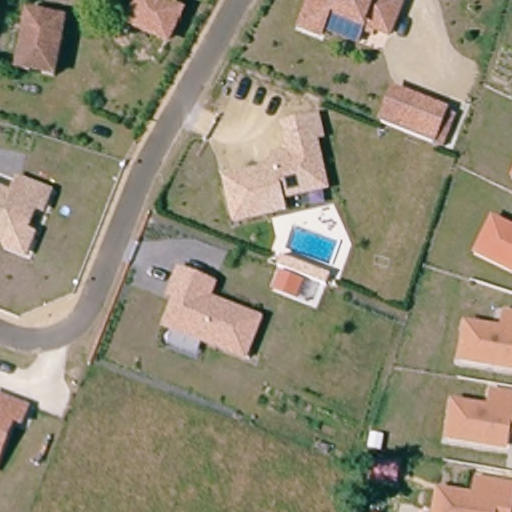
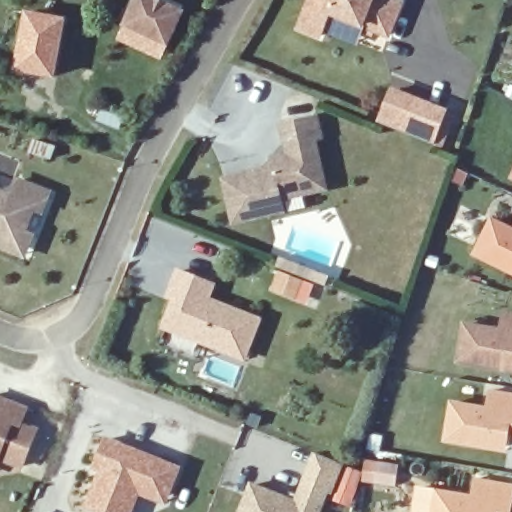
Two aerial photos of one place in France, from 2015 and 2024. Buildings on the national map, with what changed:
unchanged [(170,41),(132,22),(143,0),(158,0),(184,12),(170,41)]
unchanged [(327,20),(324,27),(303,19),(311,0),(403,0),(394,23),(392,28),(366,17),(360,34),(327,20)]
unchanged [(61,79),(29,72),(25,71),(36,15),(40,16),(73,22),(61,79)]
unchanged [(443,145),(433,140),(430,139),(408,130),(373,116),(384,88),(441,112),(455,117),(443,145)]
unchanged [(327,185),(283,194),(285,207),(235,217),(226,175),(275,164),(273,154),(290,151),(284,122),(319,114),(323,134),(316,135),(327,185)]
unchanged [(11,251),(15,242),(0,237),(0,193),(16,200),(23,184),(54,197),(47,214),(39,211),(28,237),(35,240),(31,250),(28,257),(11,251)]
unchanged [(508,267),(476,252),(493,218),(512,227),(512,270),(508,267)]
unchanged [(283,255),(331,273),(326,287),(277,268),(283,255)]
unchanged [(246,362),(162,329),(173,300),(166,298),(178,267),(220,282),(214,297),(264,317),(246,362)]
unchanged [(493,371),(458,364),(465,327),(500,333),(503,317),(512,319),(512,374),(493,371)]
unchanged [(14,427),(0,463),(0,394),(33,406),(24,425),(14,427)]
unchanged [(484,448),(449,442),(456,405),(491,412),(494,395),(512,398),(512,436),(510,436),(508,450),(507,453),(484,448)]
new [(24,470),(1,462),(14,427),(24,425),(26,421),(40,427),(24,470)]
new [(167,502),(139,491),(130,512),(103,512),(89,507),(105,470),(96,467),(107,440),(180,468),(167,502)]
new [(291,493),(301,497),(318,455),(319,453),(344,463),(332,493),(329,492),(321,512),(243,512),(253,487),(288,501),(291,493)]
unchanged [(475,495),(478,478),(512,484),(512,503),(510,512),(435,512),(440,488),(475,495)]

